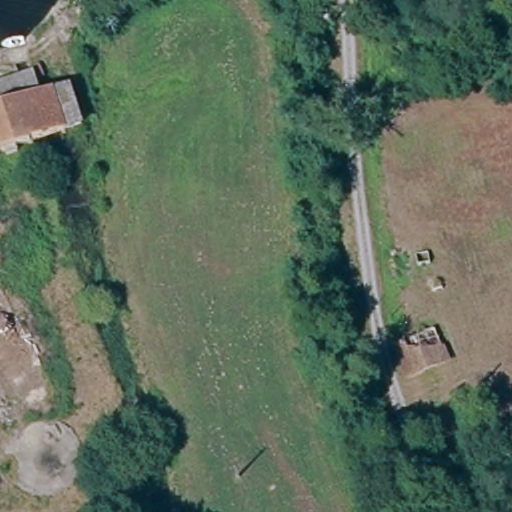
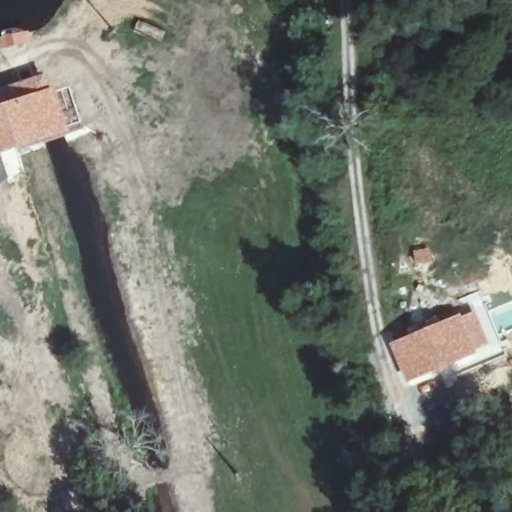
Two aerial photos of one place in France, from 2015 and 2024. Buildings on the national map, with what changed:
unchanged [(36,97),(64,87),(76,123),(0,150),(0,112),(36,97)]
new [(437,322),(474,309),(491,347),(485,349),(486,353),(405,386),(388,343),(437,322)]
demolished [(405,377),(392,346),(434,328),(447,359),(405,377)]

